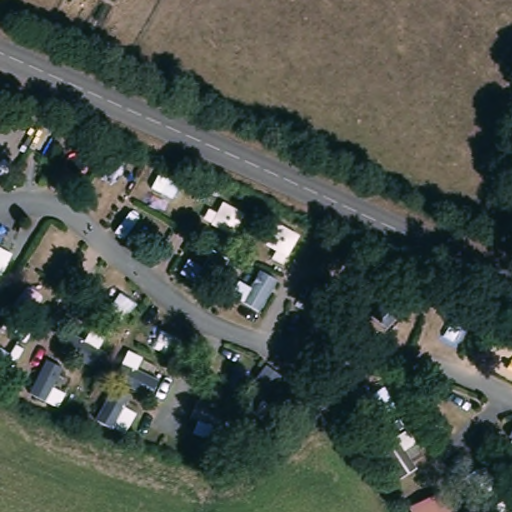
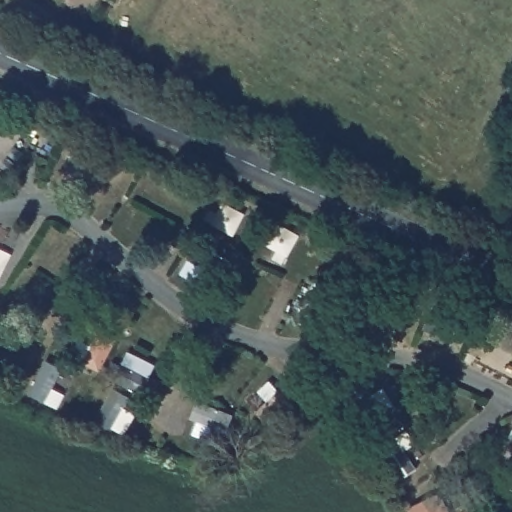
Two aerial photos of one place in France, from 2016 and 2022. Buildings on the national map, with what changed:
unchanged [(0,288),(0,242),(18,251),(0,288)]

